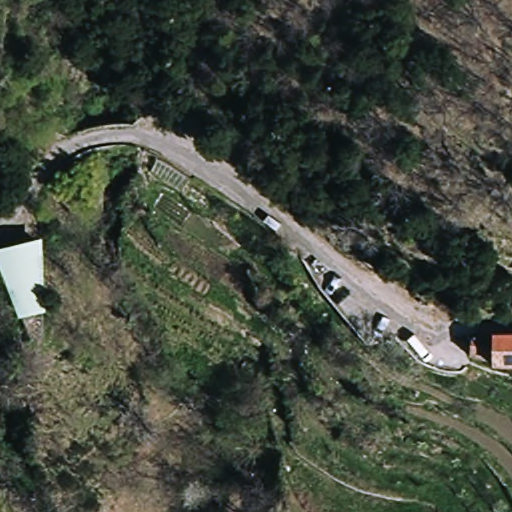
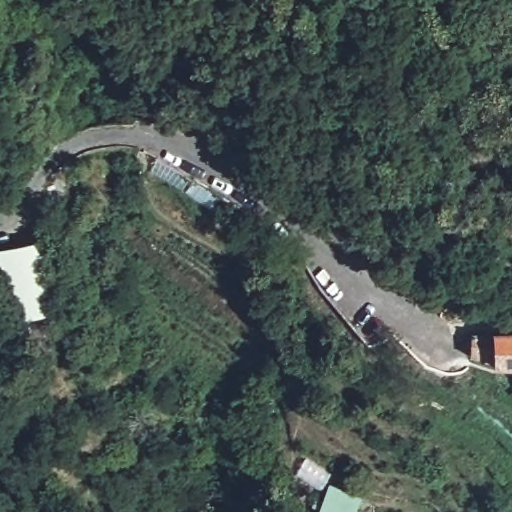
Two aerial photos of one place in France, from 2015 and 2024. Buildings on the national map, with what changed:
unchanged [(43,232),(57,307),(8,316),(0,277),(0,240),(43,232)]
unchanged [(503,357),(482,352),(483,328),(509,331),(512,331),(512,364),(504,365),(503,357)]
new [(360,496),(353,512),(321,512),(332,484),(360,496)]

